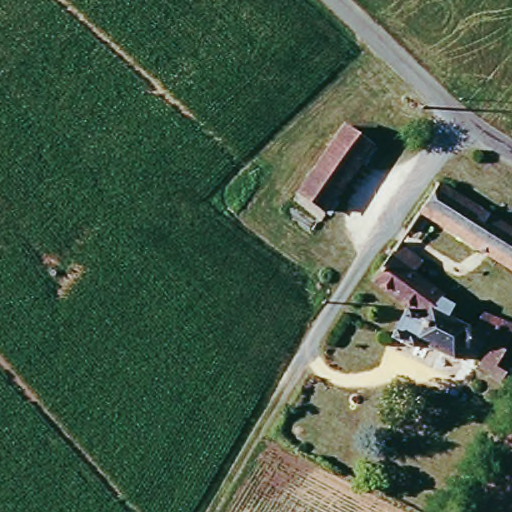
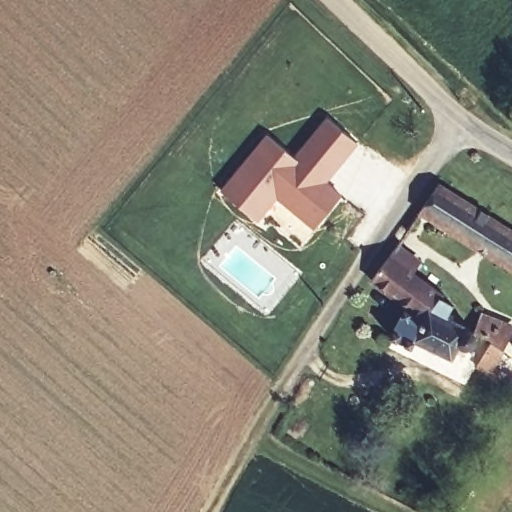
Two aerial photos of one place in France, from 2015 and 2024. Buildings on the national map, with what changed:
new [(359,145),(327,182),(343,195),(315,229),(278,198),(259,222),(221,191),(268,135),(294,156),(327,118),(359,145)]
demolished [(373,147),(327,212),(301,193),(347,129),(373,147)]
unchanged [(441,186),(512,229),(512,272),(420,216),(441,186)]
unchanged [(431,319),(417,310),(380,285),(402,249),(412,257),(407,267),(447,297),(431,319)]
unchanged [(489,308),(512,322),(512,334),(506,350),(500,368),(492,379),(472,368),(473,360),(462,354),(457,359),(424,341),(417,351),(397,340),(412,316),(417,310),(431,319),(447,297),(457,304),(454,313),(477,327),(489,308)]
unchanged [(506,375),(512,366),(512,379),(506,375)]

